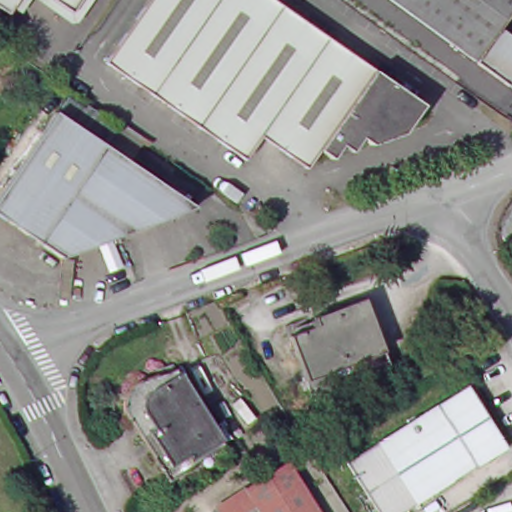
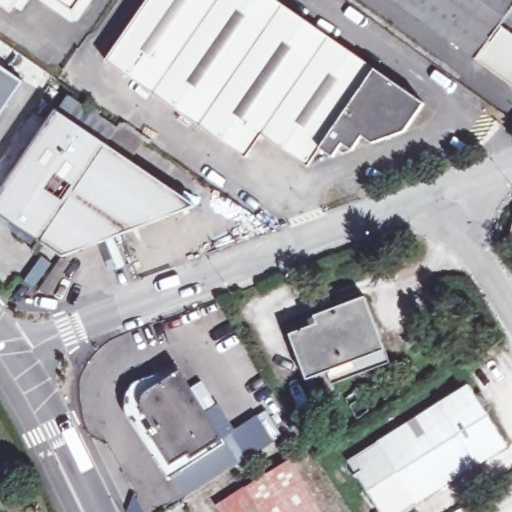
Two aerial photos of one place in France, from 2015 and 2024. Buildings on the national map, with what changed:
unchanged [(0,1),(0,0),(18,0),(15,4),(12,10),(0,1)]
unchanged [(15,4),(18,0),(32,0),(24,10),(15,4)]
unchanged [(44,0),(64,0),(77,9),(83,0),(96,0),(79,24),(44,0)]
unchanged [(64,0),(83,0),(77,9),(64,0)]
unchanged [(407,131),(376,143),(365,136),(355,150),(344,144),(336,157),(323,149),(311,166),(264,134),(249,157),(108,61),(150,0),(278,0),(426,103),(407,131)]
unchanged [(512,32),(512,82),(398,0),(512,0),(512,13),(503,26),(512,32)]
new [(23,82),(0,117),(0,66),(23,82)]
unchanged [(201,207),(67,255),(0,208),(0,196),(60,110),(201,207)]
unchanged [(369,296),(390,362),(333,381),(329,371),(309,378),(292,331),(321,321),(318,312),(369,296)]
unchanged [(141,380),(142,379),(179,362),(226,438),(171,472),(133,410),(133,408),(132,391),(133,390),(133,388),(133,387),(134,386),(134,385),(136,384),(136,383),(138,382),(138,381),(139,380),(141,380)]
unchanged [(472,382),(512,445),(405,512),(386,512),(352,458),(472,382)]
unchanged [(325,512),(267,512),(261,503),(247,512),(229,512),(223,503),(251,487),(293,461),(325,512)]

